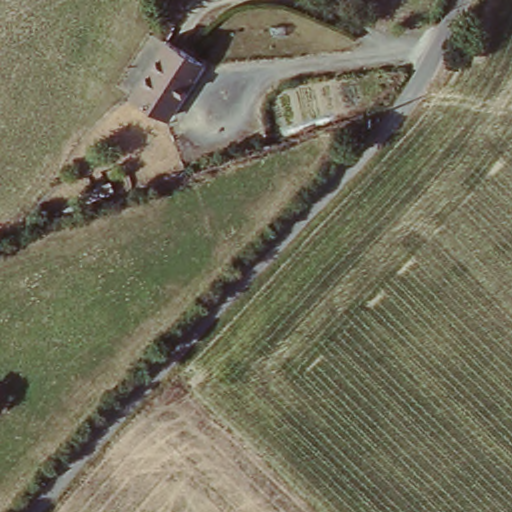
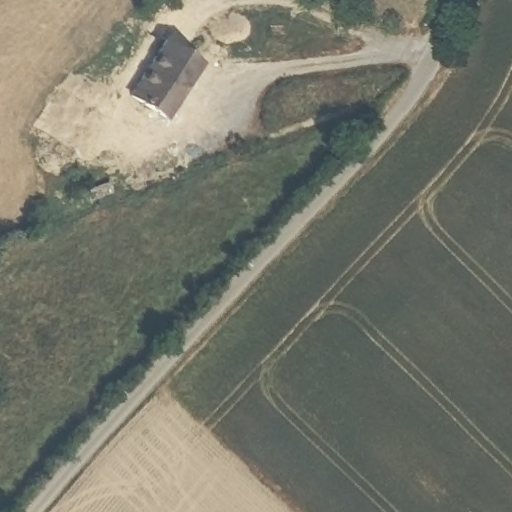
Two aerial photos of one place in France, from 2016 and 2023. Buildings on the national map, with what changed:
unchanged [(168,43),(205,66),(169,121),(134,98),(168,43)]

